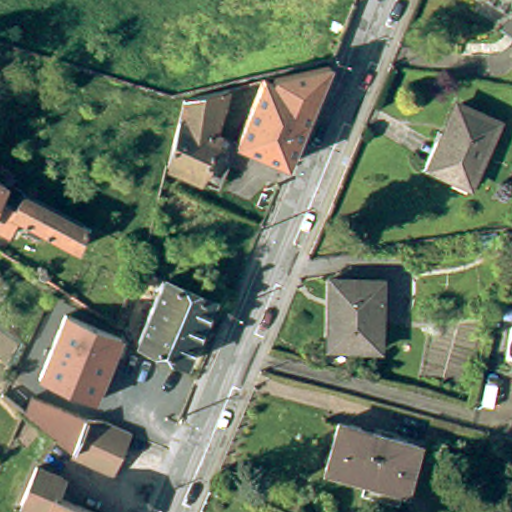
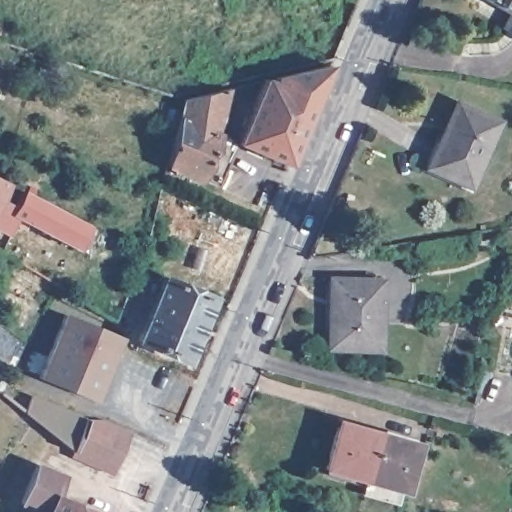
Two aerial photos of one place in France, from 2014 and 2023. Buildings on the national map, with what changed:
unchanged [(509,11),(491,0),(512,0),(512,35),(508,33),(499,27),(509,11)]
unchanged [(309,73),(331,68),(286,168),(238,147),(236,146),(263,84),(265,83),(272,86),(274,81),(309,73)]
unchanged [(166,170),(181,119),(186,103),(229,93),(218,137),(236,146),(238,147),(229,167),(229,168),(219,192),(166,170)]
unchanged [(503,132),(477,190),(459,181),(457,186),(439,178),(450,155),(445,152),(463,114),(503,132)]
unchanged [(0,198),(0,183),(6,186),(0,198)]
unchanged [(22,194),(30,199),(18,221),(9,237),(0,233),(0,201),(14,209),(22,194)]
unchanged [(109,240),(99,259),(77,248),(76,250),(18,221),(30,199),(109,240)]
unchanged [(509,240),(508,229),(512,228),(512,240),(509,240)]
unchanged [(131,280),(138,266),(148,270),(142,285),(131,280)]
unchanged [(219,304),(193,364),(143,342),(169,282),(219,304)]
unchanged [(388,285),(384,354),(336,353),(336,306),(334,304),(336,283),(388,285)]
unchanged [(121,342),(94,405),(39,381),(67,318),(121,342)]
unchanged [(72,449),(23,410),(3,394),(10,379),(31,394),(86,417),(72,449)]
unchanged [(103,418),(130,429),(113,469),(78,454),(72,449),(86,417),(103,418)]
unchanged [(369,482),(331,472),(343,426),(382,437),(369,482)]
unchanged [(422,449),(409,494),(369,482),(382,437),(422,449)]
unchanged [(55,504),(73,512),(20,512),(36,475),(63,486),(55,504)]

